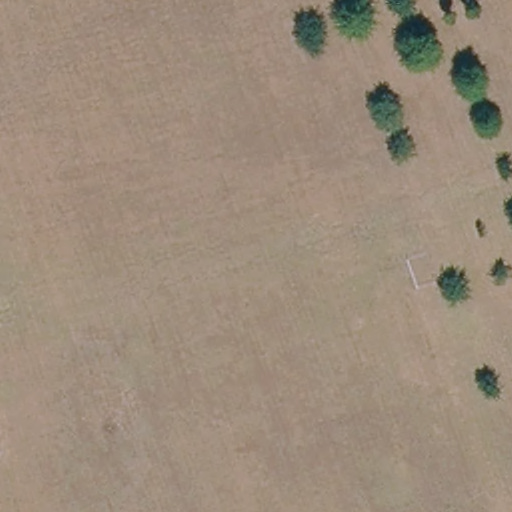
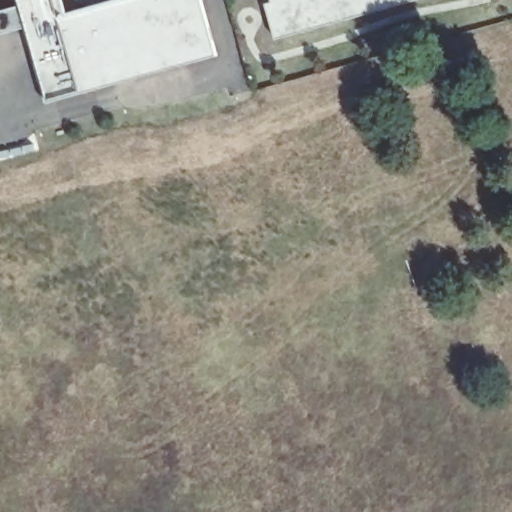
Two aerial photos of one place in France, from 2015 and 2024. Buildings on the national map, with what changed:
new [(45,101),(24,22),(0,30),(0,8),(19,3),(19,0),(65,0),(68,11),(108,0),(201,0),(215,50),(45,101)]
new [(266,0),(399,0),(276,34),(266,0)]

